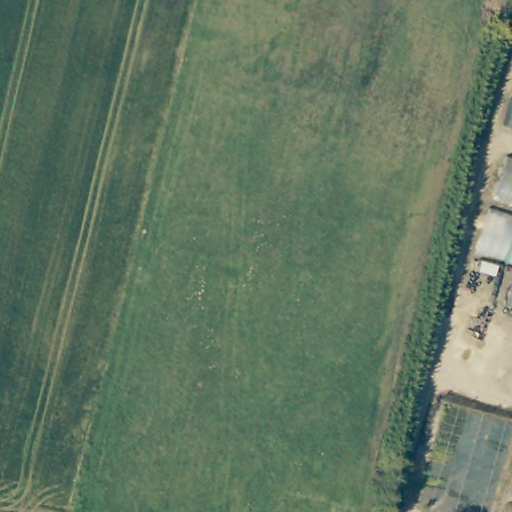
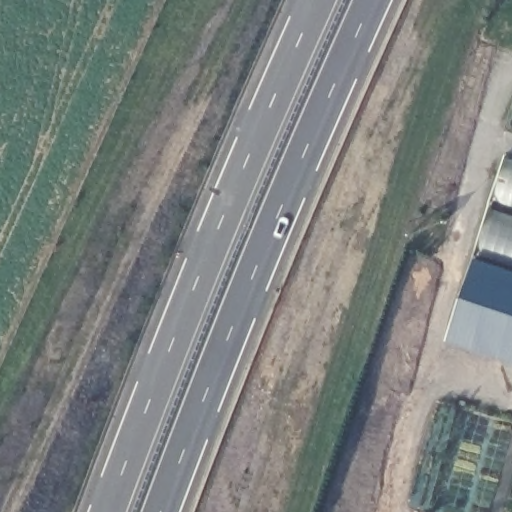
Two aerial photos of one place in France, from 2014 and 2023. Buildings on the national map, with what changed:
unchanged [(507,163),(512,164),(512,267),(479,256),(507,163)]
new [(475,257),(512,270),(512,362),(447,340),(475,257)]

